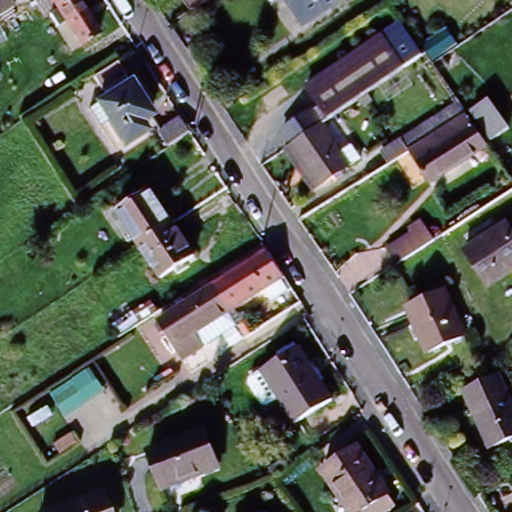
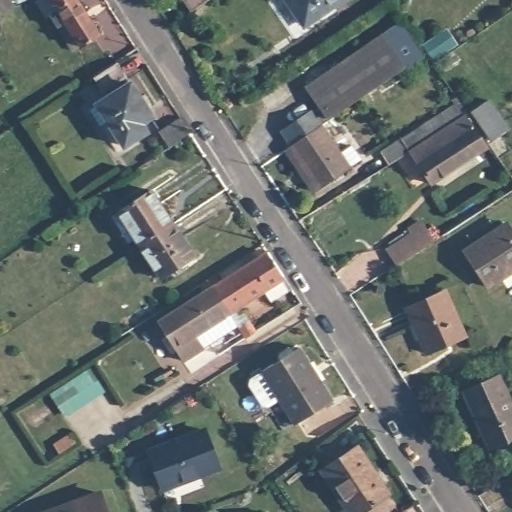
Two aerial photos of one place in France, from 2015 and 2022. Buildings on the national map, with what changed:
unchanged [(10,0),(0,7),(0,0),(10,0)]
unchanged [(81,43),(66,18),(59,22),(52,10),(57,6),(54,0),(80,0),(100,31),(81,43)]
unchanged [(194,13),(194,12),(186,0),(187,0),(213,0),(197,10),(194,13)]
unchanged [(292,0),(336,0),(305,20),(292,0)]
unchanged [(289,141),(280,127),(318,102),(306,83),(379,34),(400,65),(318,121),(289,141)]
unchanged [(40,65),(55,56),(59,61),(44,70),(40,65)]
unchanged [(143,119),(149,128),(125,143),(99,101),(107,95),(94,74),(112,61),(117,59),(131,79),(152,113),(143,119)]
unchanged [(489,96),(509,124),(493,135),(472,106),(489,96)]
unchanged [(487,145),(432,180),(409,146),(402,136),(443,111),(449,120),(465,110),(487,145)]
unchanged [(192,134),(170,148),(160,133),(182,119),(192,134)]
unchanged [(318,121),(346,164),(315,185),(287,142),(289,141),(318,121)]
unchanged [(142,242),(119,205),(150,185),(174,220),(142,242)]
unchanged [(397,260),(387,244),(412,229),(410,224),(422,215),(425,220),(434,236),(397,260)]
unchanged [(174,220),(194,253),(162,274),(142,242),(174,220)]
unchanged [(507,221),(512,230),(512,268),(485,285),(462,249),(507,221)]
unchanged [(220,281),(265,252),(282,278),(232,310),(209,276),(214,273),(220,281)]
unchanged [(191,353),(182,359),(172,343),(157,322),(204,292),(198,283),(209,276),(232,310),(195,334),(202,346),(191,353)]
unchanged [(444,291),(465,335),(427,351),(407,308),(444,291)]
unchanged [(251,327),(257,335),(248,341),(245,344),(239,334),(242,332),(251,327)]
unchanged [(294,422),(262,371),(299,349),(331,399),(294,422)]
unchanged [(64,414),(47,392),(87,367),(105,388),(64,414)]
unchanged [(512,399),(512,437),(495,445),(467,388),(499,372),(512,399)]
unchanged [(144,456),(197,422),(220,454),(165,489),(144,456)]
unchanged [(385,512),(352,512),(329,479),(365,455),(400,502),(385,512)]
unchanged [(38,509),(100,487),(108,512),(39,512),(38,509)]
unchanged [(267,508),(269,512),(257,512),(267,508)]

